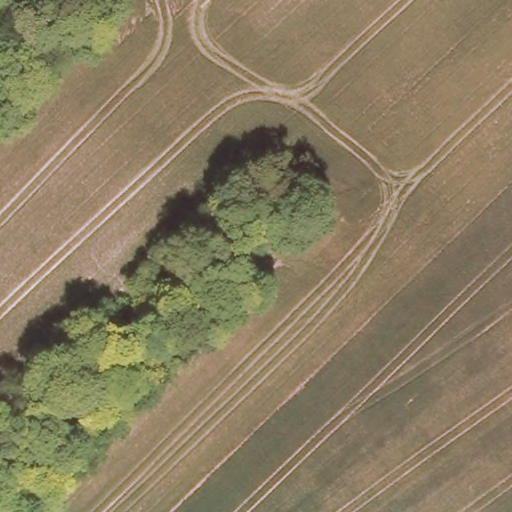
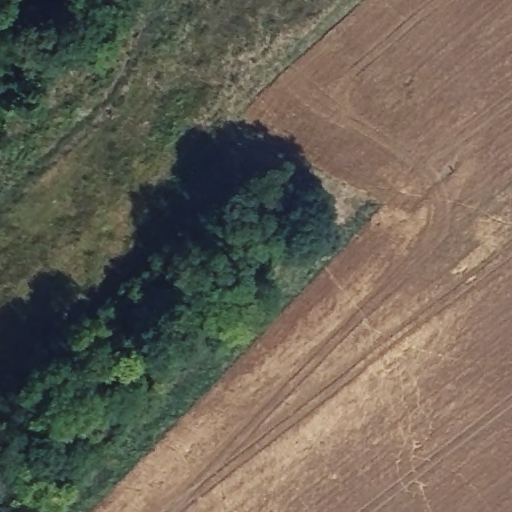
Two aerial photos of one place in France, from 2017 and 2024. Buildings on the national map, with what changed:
unchanged [(33,24),(12,0),(53,0),(54,1),(33,24)]

